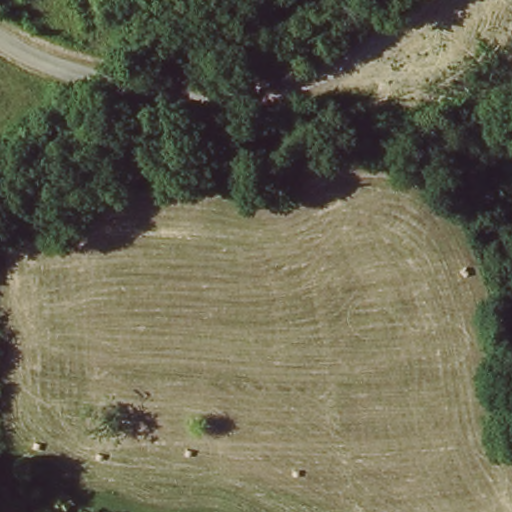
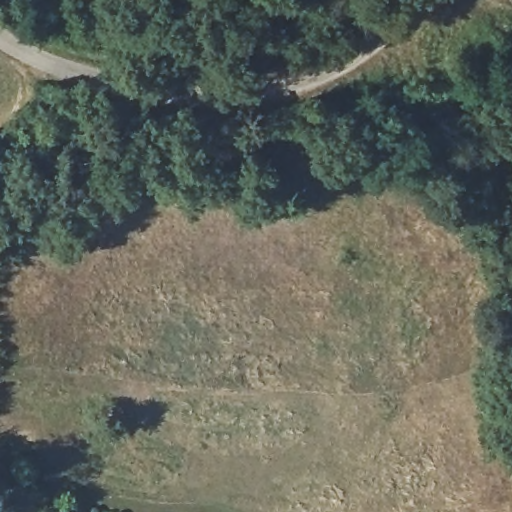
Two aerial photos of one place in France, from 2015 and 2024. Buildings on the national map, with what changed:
unchanged [(86,512),(68,512),(70,507),(86,512)]

